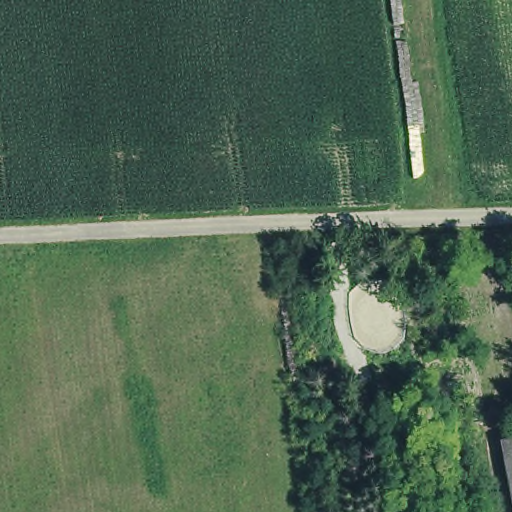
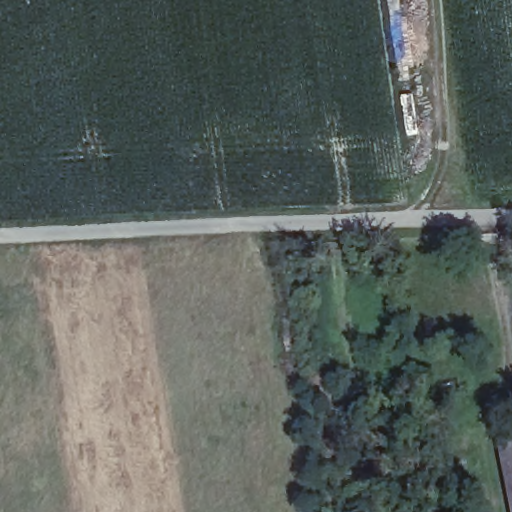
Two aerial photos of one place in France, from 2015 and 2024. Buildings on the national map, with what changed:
unchanged [(512,440),(512,483),(504,441),(512,440)]

